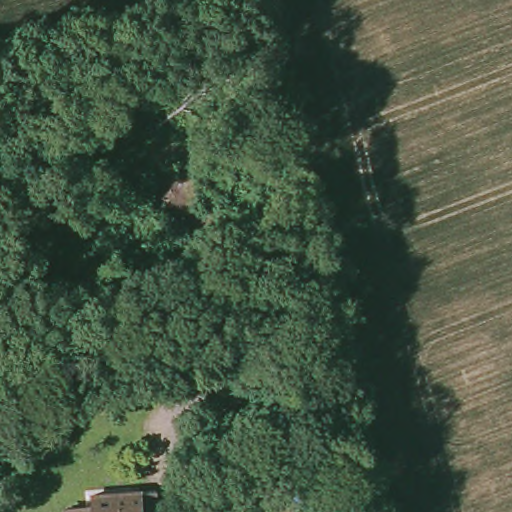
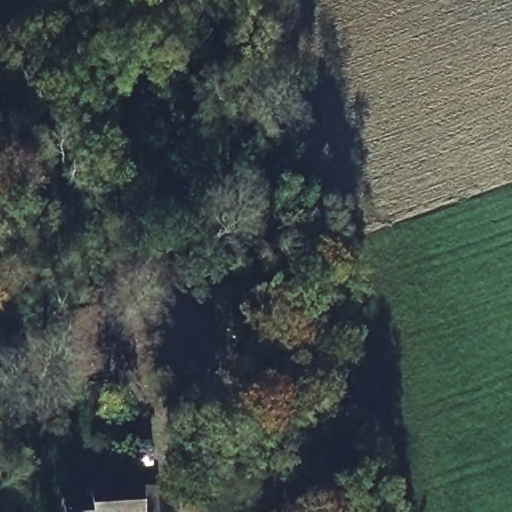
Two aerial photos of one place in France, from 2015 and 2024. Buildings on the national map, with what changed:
unchanged [(56,488),(97,483),(98,500),(161,490),(164,512),(59,512),(56,488)]
unchanged [(288,500),(311,494),(317,512),(292,512),(288,500)]

